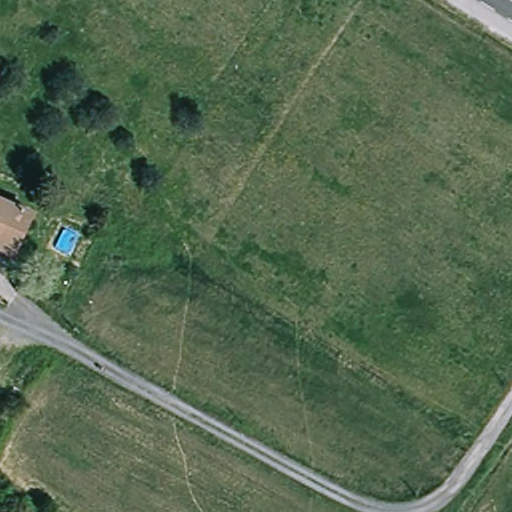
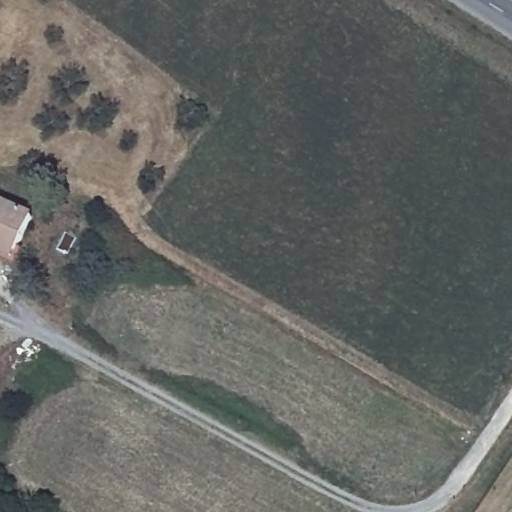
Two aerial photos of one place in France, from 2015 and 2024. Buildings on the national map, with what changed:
unchanged [(0,204),(30,218),(15,252),(11,259),(0,254),(0,204)]

